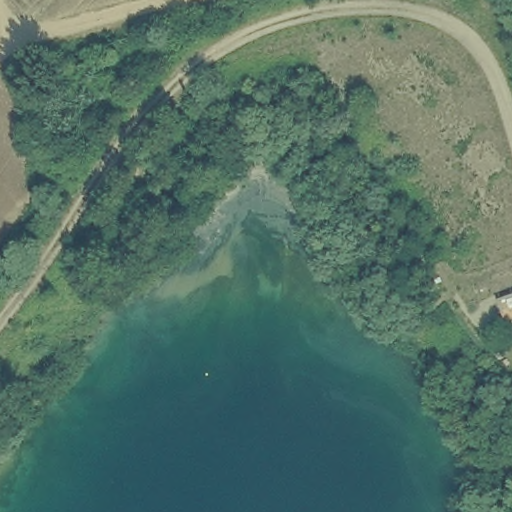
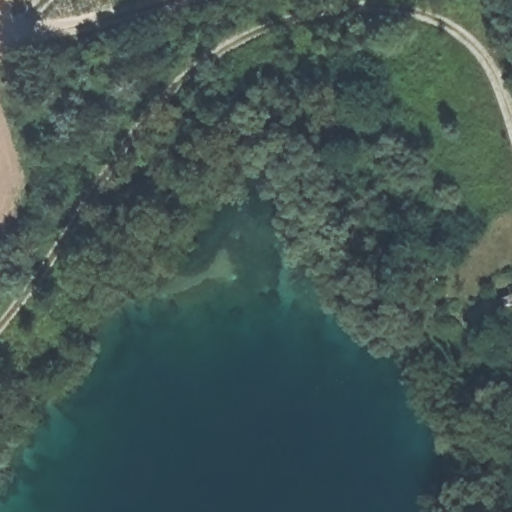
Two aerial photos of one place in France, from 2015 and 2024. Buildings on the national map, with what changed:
[]

